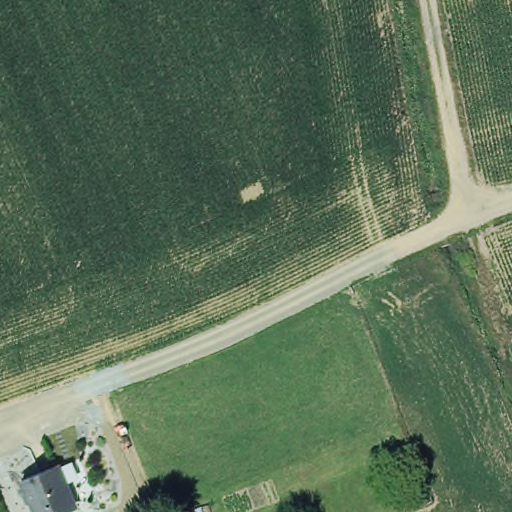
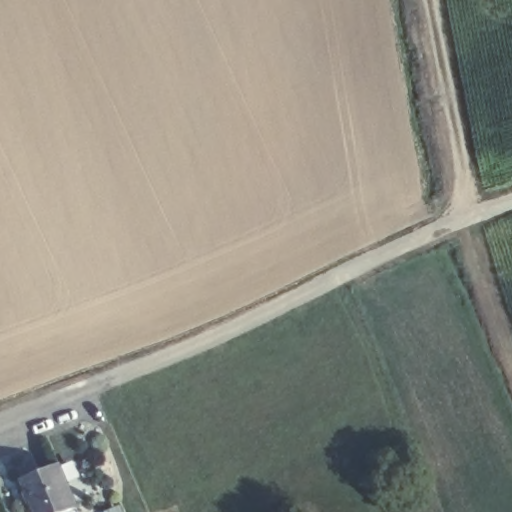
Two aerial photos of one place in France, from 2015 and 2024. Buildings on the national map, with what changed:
unchanged [(63,512),(36,512),(23,479),(60,464),(67,483),(65,484),(74,507),(63,512)]

